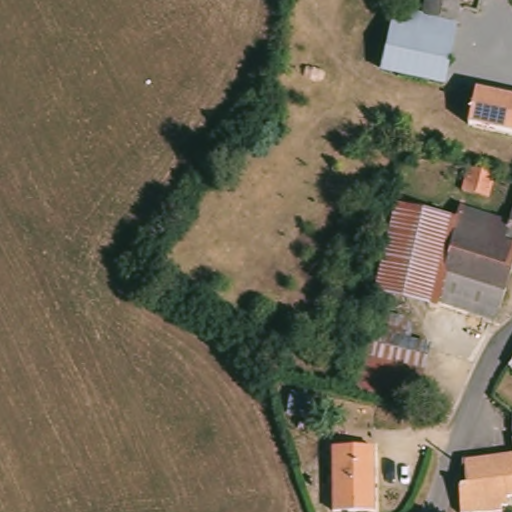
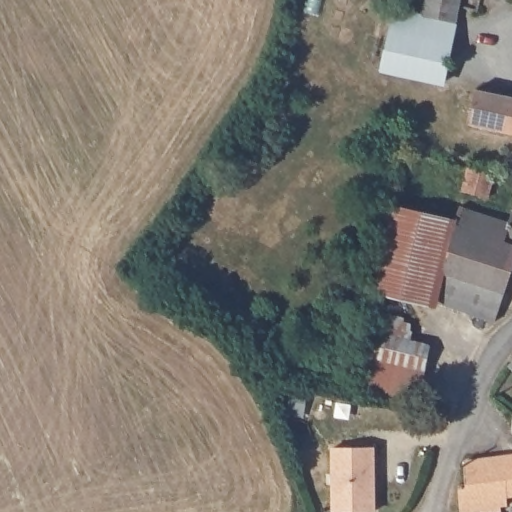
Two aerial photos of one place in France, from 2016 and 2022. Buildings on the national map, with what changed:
unchanged [(409,42),(452,51),(445,87),(384,73),(392,38),(409,42)]
unchanged [(512,95),(512,131),(471,122),(478,88),(512,95)]
unchanged [(496,175),(490,194),(466,187),(471,167),(496,175)]
unchanged [(437,301),(372,278),(387,236),(399,203),(463,225),(451,253),(437,301)]
unchanged [(512,225),(512,267),(492,323),(449,306),(437,301),(451,253),(463,225),(468,210),(512,225)]
unchanged [(395,324),(392,343),(409,346),(399,399),(358,390),(370,320),(395,324)]
unchanged [(509,368),(512,365),(512,371),(509,368)]
unchanged [(377,446),(379,508),(334,509),(333,446),(377,446)]
unchanged [(494,461),(512,457),(512,493),(509,497),(484,503),(485,510),(474,512),(465,512),(462,493),(462,479),(468,479),(468,459),(476,459),(494,461)]

